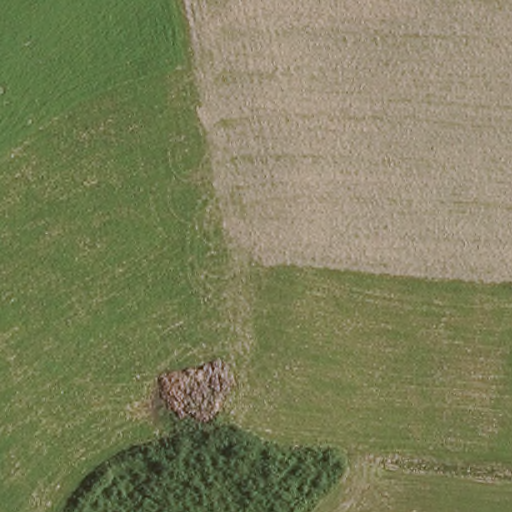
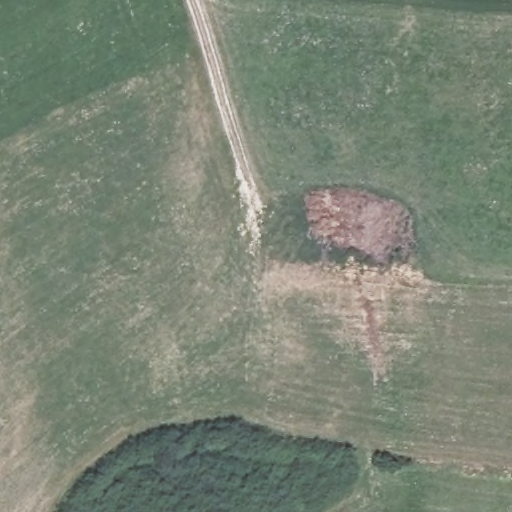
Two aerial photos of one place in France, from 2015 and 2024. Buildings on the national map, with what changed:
[]

